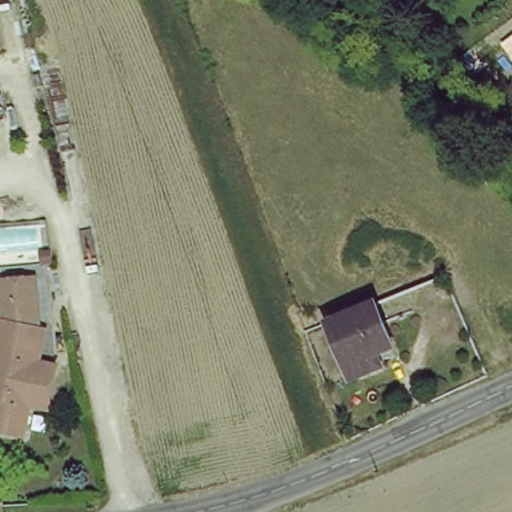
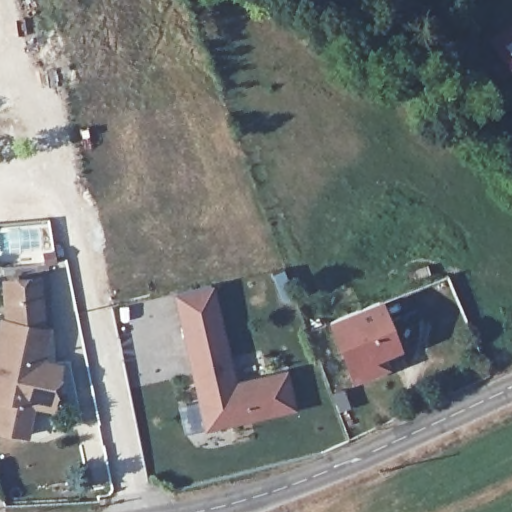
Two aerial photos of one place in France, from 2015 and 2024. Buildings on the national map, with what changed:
unchanged [(8,321),(5,286),(39,284),(43,329),(25,325),(8,321)]
new [(211,286),(219,318),(184,327),(176,294),(211,286)]
unchanged [(380,303),(397,346),(370,357),(370,366),(365,369),(365,374),(354,378),(332,323),(380,303)]
new [(219,318),(235,384),(286,372),(295,407),(209,428),(184,327),(219,318)]
unchanged [(46,405),(32,402),(25,431),(0,426),(0,326),(2,319),(8,321),(25,325),(43,329),(48,330),(41,360),(56,364),(46,405)]

